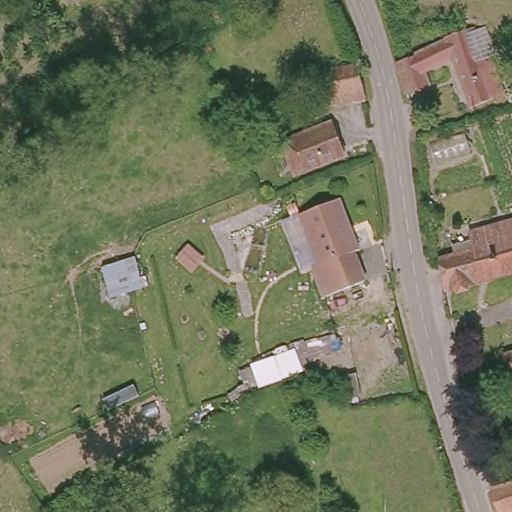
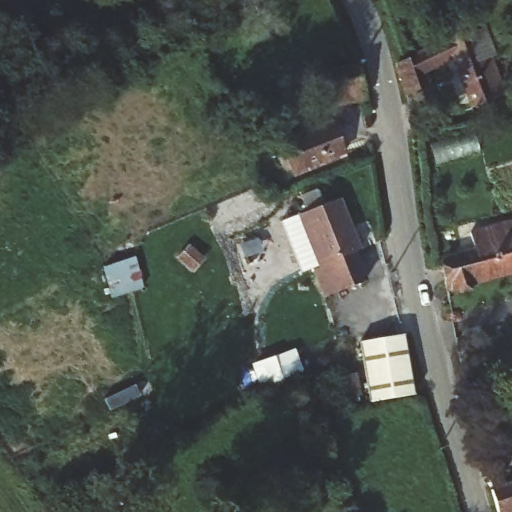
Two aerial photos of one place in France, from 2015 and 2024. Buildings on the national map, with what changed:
unchanged [(486,30),(497,57),(492,59),(508,97),(496,102),(469,37),(486,30)]
unchanged [(469,37),(496,102),(474,109),(455,61),(412,79),(415,89),(399,96),(389,66),(467,32),(469,37)]
unchanged [(359,106),(356,95),(346,97),(349,109),(335,112),(333,100),(326,102),(329,121),(313,124),(309,103),(318,101),(314,77),(371,64),(377,102),(359,106)]
unchanged [(329,123),(341,149),(291,172),(279,148),(301,137),(329,123)]
unchanged [(313,272),(318,270),(298,220),(338,204),(358,254),(353,256),(364,283),(324,299),(313,272)]
unchanged [(449,256),(499,241),(503,257),(512,255),(512,276),(424,304),(419,284),(428,282),(433,280),(432,270),(451,265),(449,256)]
new [(414,395),(371,402),(361,342),(404,334),(414,395)]
new [(270,387),(259,390),(251,362),(297,350),(304,373),(269,383),(270,387)]
unchanged [(496,360),(512,356),(512,380),(499,383),(496,360)]
unchanged [(512,477),(512,512),(493,512),(484,486),(512,477)]

